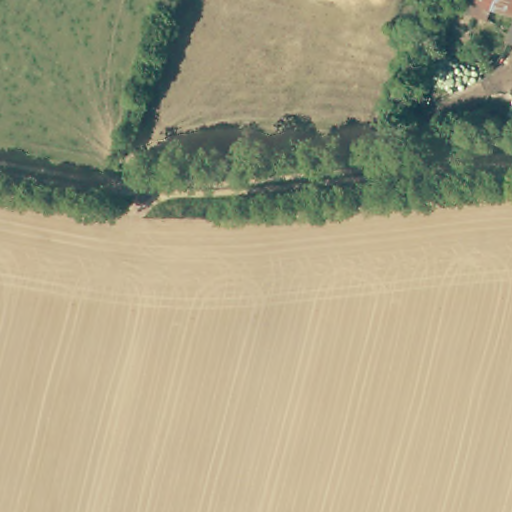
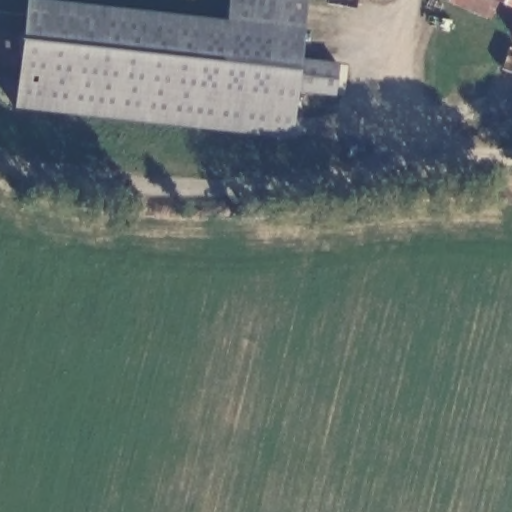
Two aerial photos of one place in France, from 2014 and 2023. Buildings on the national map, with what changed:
new [(25,0),(35,0),(224,19),(226,0),(304,0),(300,57),(336,61),(333,93),(297,90),(291,140),(14,108),(25,0)]
unchanged [(512,5),(505,2),(498,18),(457,1),(458,0),(512,0),(512,5)]

